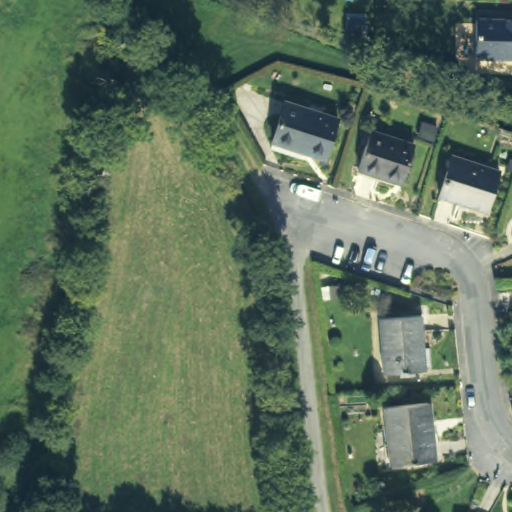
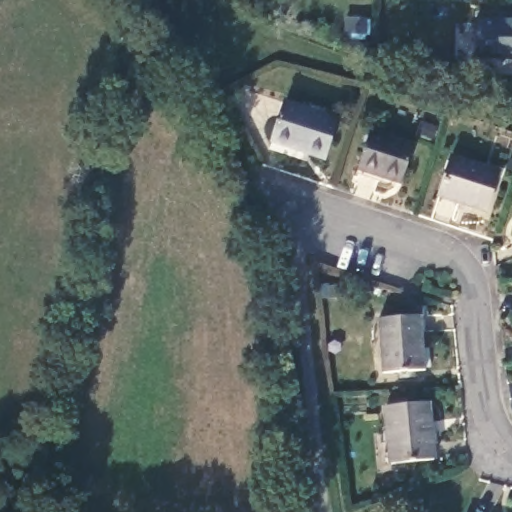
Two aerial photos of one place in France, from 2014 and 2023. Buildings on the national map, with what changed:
unchanged [(476,20),(512,20),(512,59),(475,59),(476,20)]
unchanged [(342,119),(330,159),(277,142),(290,101),(342,119)]
unchanged [(412,146),(400,185),(356,170),(369,132),(412,146)]
unchanged [(499,170),(487,212),(440,198),(453,156),(499,170)]
unchanged [(418,317),(421,369),(378,369),(377,319),(418,317)]
unchanged [(432,408),(435,461),(393,462),(391,409),(432,408)]

